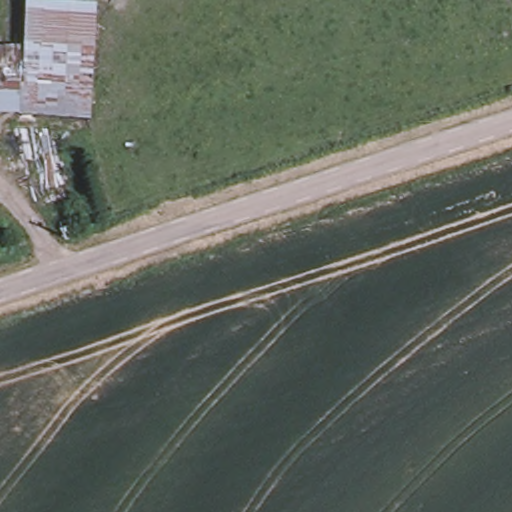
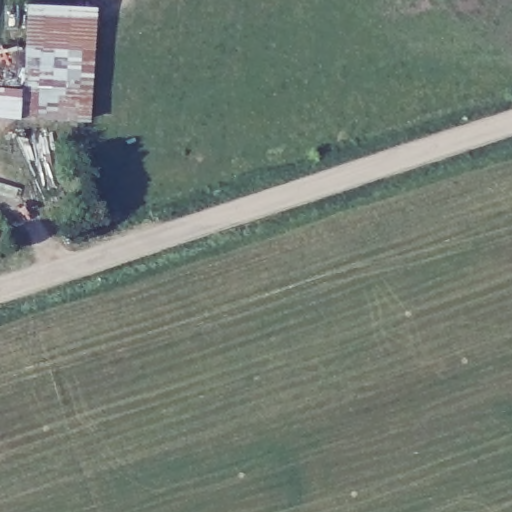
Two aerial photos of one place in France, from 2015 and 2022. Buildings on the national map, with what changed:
unchanged [(86,112),(0,111),(0,80),(22,81),(23,0),(68,0),(96,2),(86,112)]

